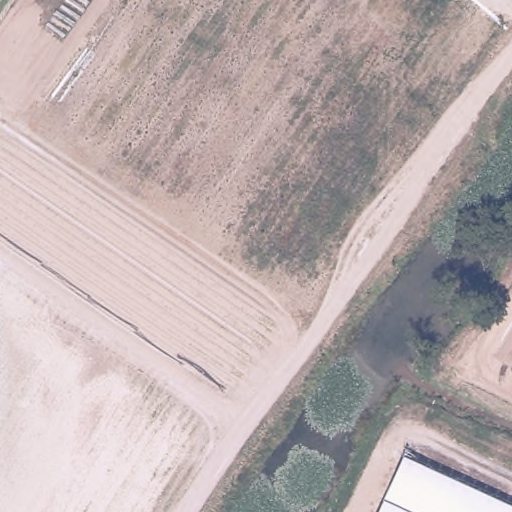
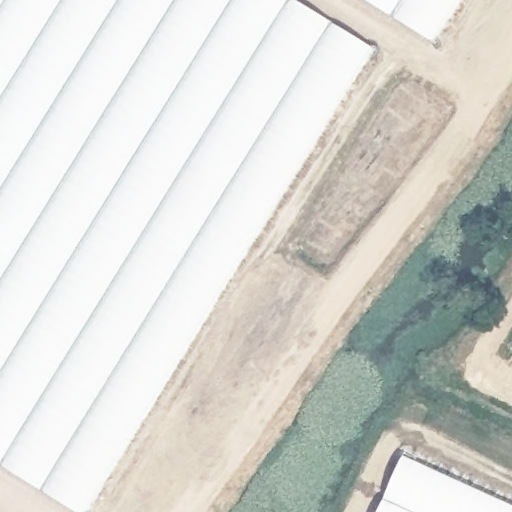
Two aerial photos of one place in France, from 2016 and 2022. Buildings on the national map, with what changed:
new [(0,467),(0,0),(292,0),(376,53),(90,512),(73,512),(0,467)]
new [(360,0),(461,0),(433,46),(360,0)]
new [(512,507),(512,512),(374,512),(398,455),(512,507)]

